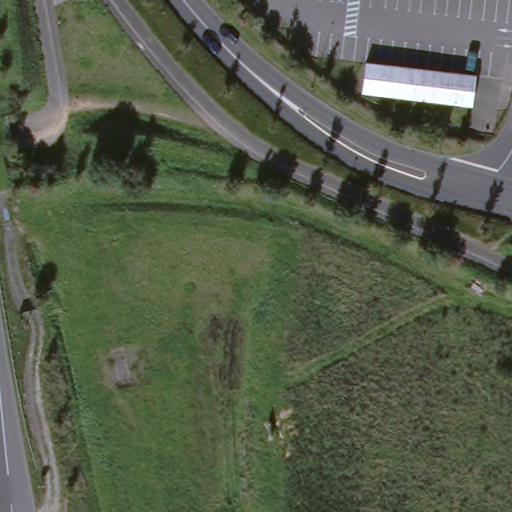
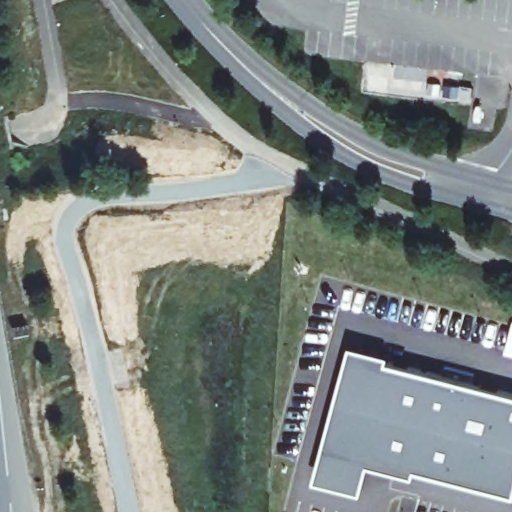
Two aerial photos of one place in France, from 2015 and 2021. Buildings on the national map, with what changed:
new [(512,354),(506,352),(512,327),(512,354)]
new [(512,397),(512,498),(410,472),(408,483),(395,480),(397,469),(377,464),(331,452),(355,357),(512,397)]
new [(331,452),(377,464),(366,508),(320,496),(331,452)]

